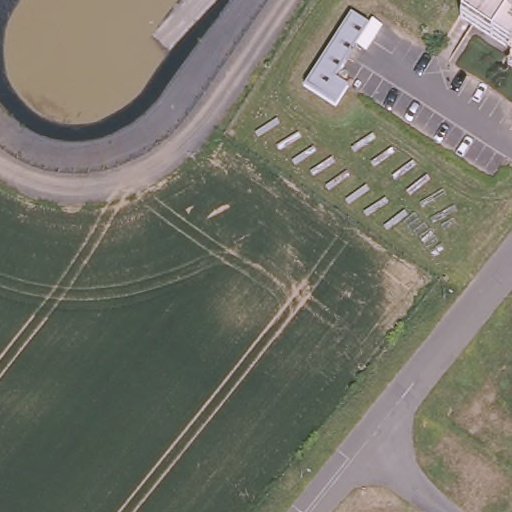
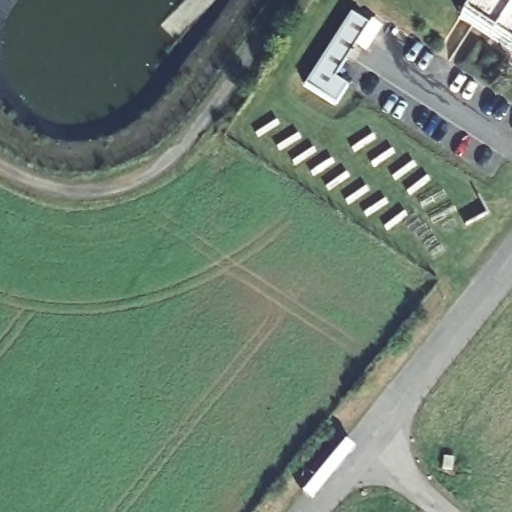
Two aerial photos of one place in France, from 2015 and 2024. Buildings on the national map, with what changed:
unchanged [(458,18),(471,0),(512,0),(512,56),(458,18)]
unchanged [(368,20),(334,71),(347,80),(335,100),(304,79),(352,8),(368,20)]

